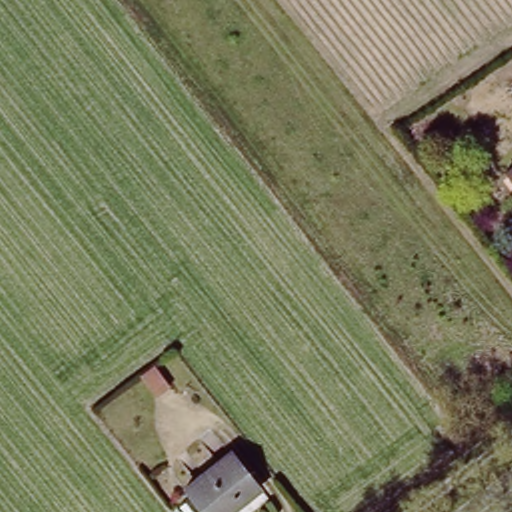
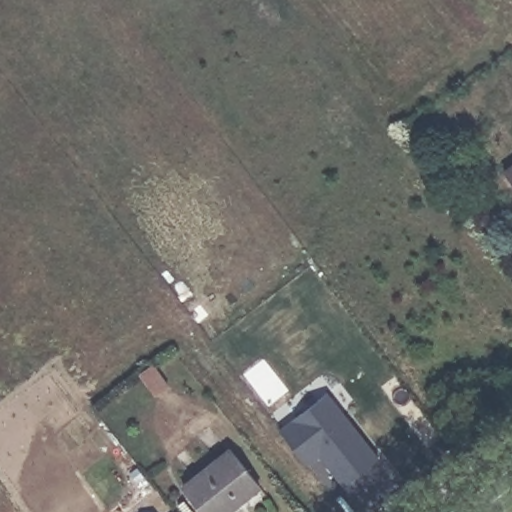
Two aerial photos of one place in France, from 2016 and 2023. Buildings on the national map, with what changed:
unchanged [(512,164),(512,192),(498,175),(512,164)]
unchanged [(155,362),(172,385),(156,395),(139,374),(155,362)]
new [(342,487),(318,456),(307,465),(279,428),(326,392),(378,458),(342,487)]
unchanged [(253,487),(221,512),(197,512),(180,491),(226,454),(253,487)]

